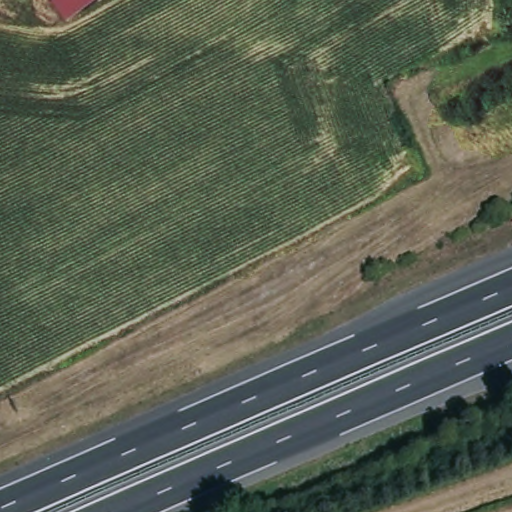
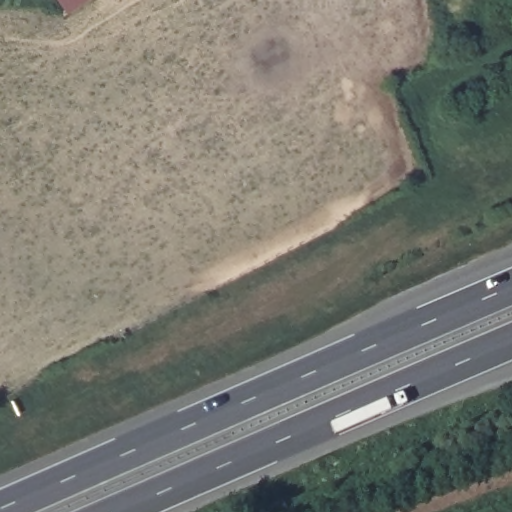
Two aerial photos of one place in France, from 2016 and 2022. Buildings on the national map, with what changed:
unchanged [(59,0),(84,0),(68,12),(59,0)]

